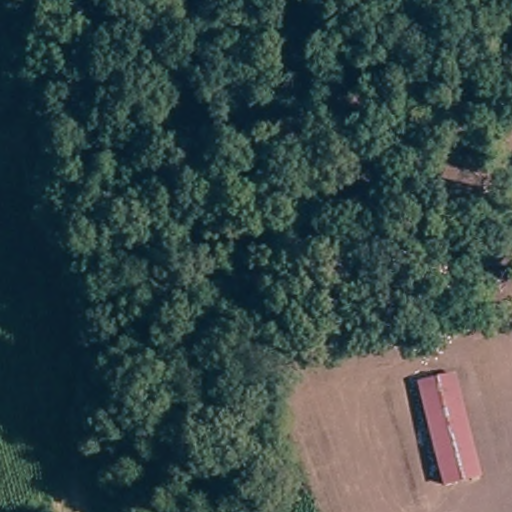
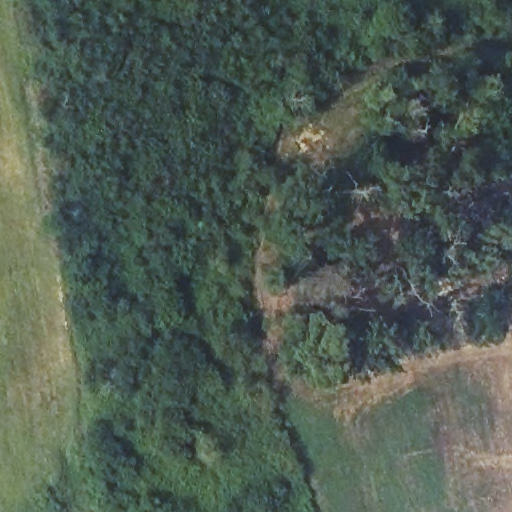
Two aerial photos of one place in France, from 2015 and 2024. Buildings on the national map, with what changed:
demolished [(451,375),(480,476),(440,485),(415,385),(451,375)]

